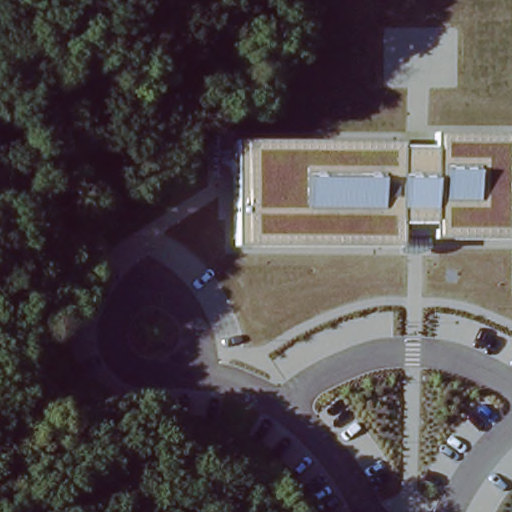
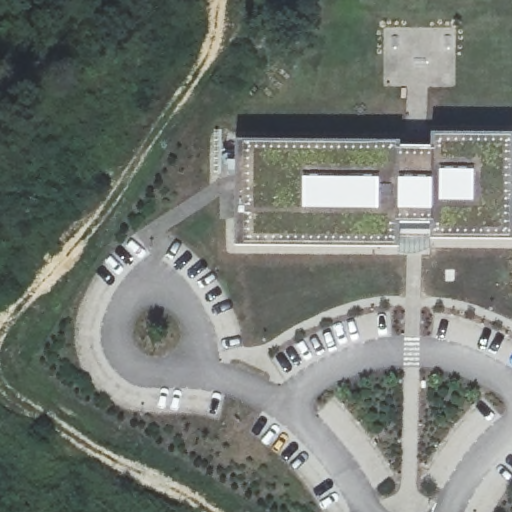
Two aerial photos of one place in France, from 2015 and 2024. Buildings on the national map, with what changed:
unchanged [(432,134),(512,134),(512,239),(432,239),(432,134)]
unchanged [(401,246),(236,244),(234,140),(400,142),(401,246)]

